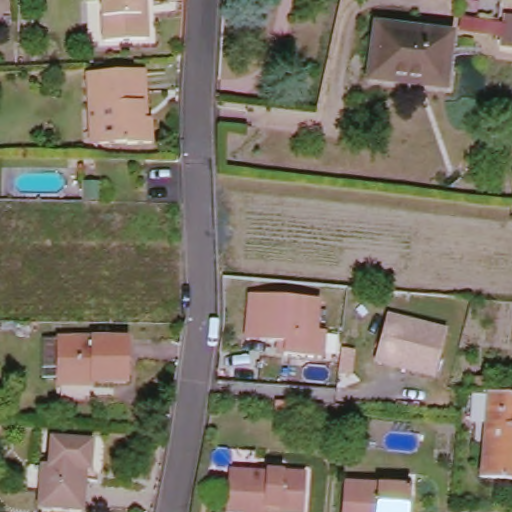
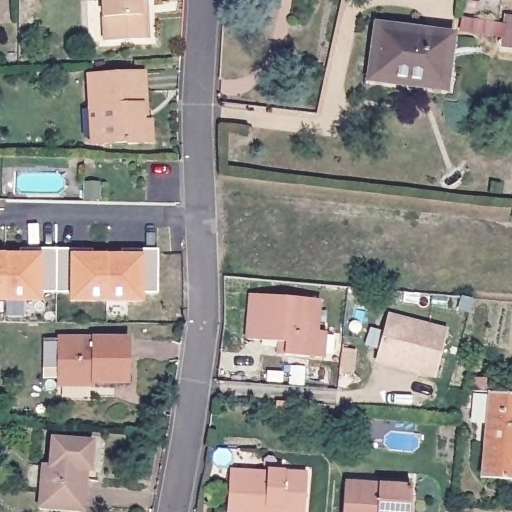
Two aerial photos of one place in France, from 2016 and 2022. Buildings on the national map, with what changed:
unchanged [(148,13),(155,14),(156,38),(112,41),(110,0),(152,0),(148,0),(148,13)]
unchanged [(368,78),(376,23),(452,33),(444,88),(368,78)]
unchanged [(88,105),(86,74),(143,70),(146,102),(142,102),(143,116),(144,117),(146,117),(148,119),(149,121),(149,123),(150,126),(151,140),(126,143),(125,139),(98,141),(91,141),(88,105)]
unchanged [(81,197),(81,182),(97,182),(97,197),(81,197)]
new [(157,249),(158,293),(143,293),(144,303),(70,303),(70,293),(43,292),(43,301),(0,301),(0,248),(157,249)]
unchanged [(286,352),(289,340),(251,336),(254,292),(321,299),(319,329),(326,330),(324,356),(286,352)]
unchanged [(393,313),(451,328),(438,378),(421,373),(379,362),(383,350),(393,313)]
unchanged [(51,372),(51,342),(138,343),(138,388),(100,387),(101,384),(66,384),(51,384),(51,372)]
unchanged [(348,345),(360,346),(359,371),(346,370),(348,345)]
unchanged [(477,395),(477,382),(492,384),(491,396),(477,395)]
unchanged [(491,399),(512,401),(512,484),(484,481),(491,399)]
unchanged [(43,507),(45,466),(51,466),(53,438),(95,441),(93,470),(89,470),(86,511),(78,510),(43,507)]
unchanged [(233,474),(269,476),(269,473),(308,476),(305,512),(229,512),(233,474)]
unchanged [(351,486),(417,491),(416,512),(349,512),(351,486)]

